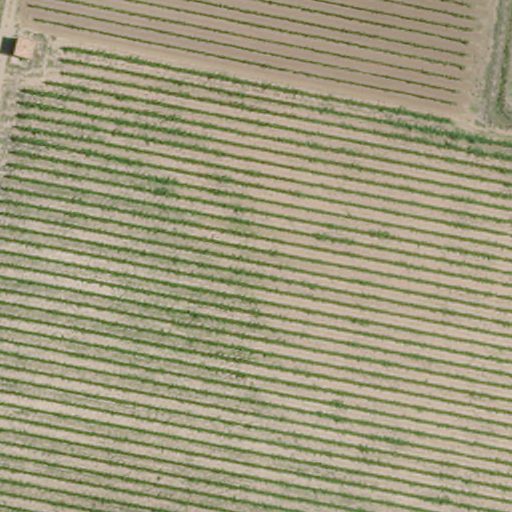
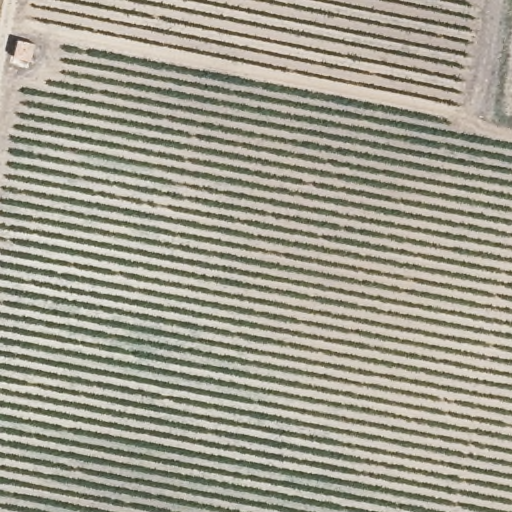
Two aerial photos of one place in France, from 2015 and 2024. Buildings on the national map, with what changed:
unchanged [(28,42),(26,66),(5,63),(8,40),(28,42)]

